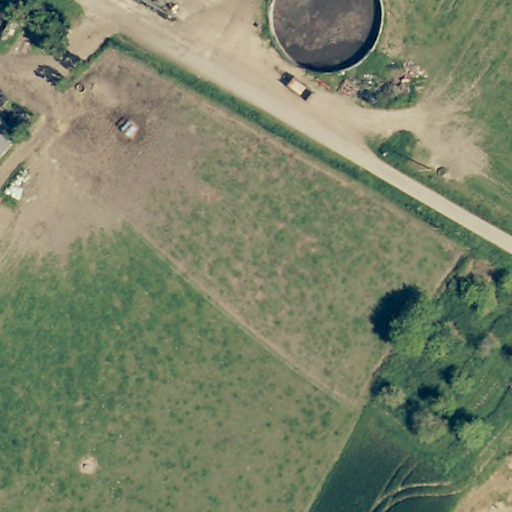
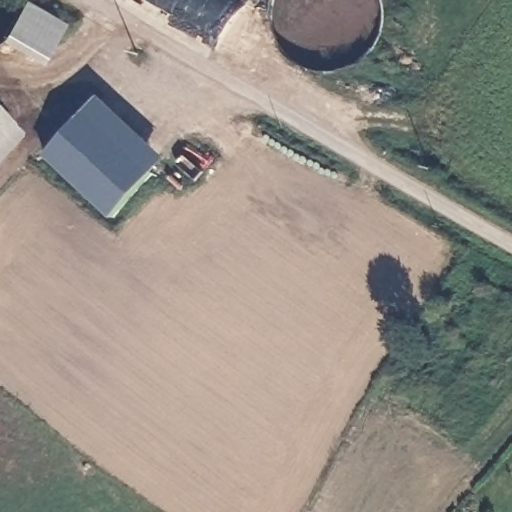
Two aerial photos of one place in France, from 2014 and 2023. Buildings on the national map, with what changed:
new [(60,26),(37,66),(0,44),(0,39),(21,3),(60,26)]
new [(167,158),(110,218),(44,155),(99,95),(167,158)]
unchanged [(20,133),(0,154),(0,114),(20,133)]

